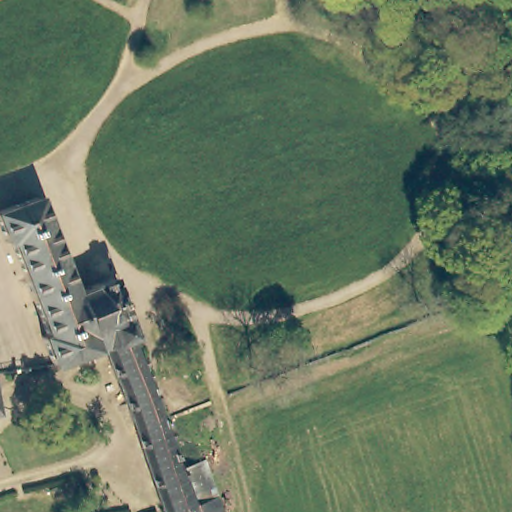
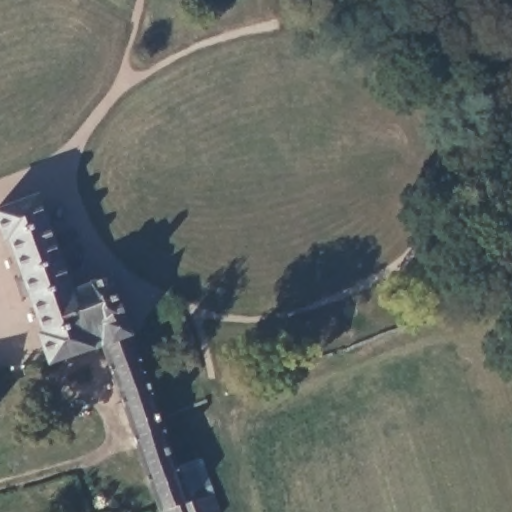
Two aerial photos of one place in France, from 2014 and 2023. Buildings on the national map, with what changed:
unchanged [(35,194),(71,288),(108,275),(129,335),(102,346),(100,342),(47,361),(37,333),(41,331),(27,293),(21,295),(15,278),(21,275),(7,237),(3,239),(0,231),(0,207),(35,194)]
unchanged [(176,465),(199,457),(218,512),(160,512),(102,346),(129,335),(176,465)]

